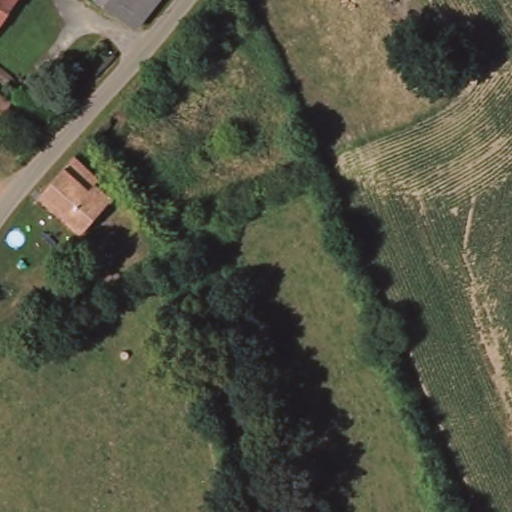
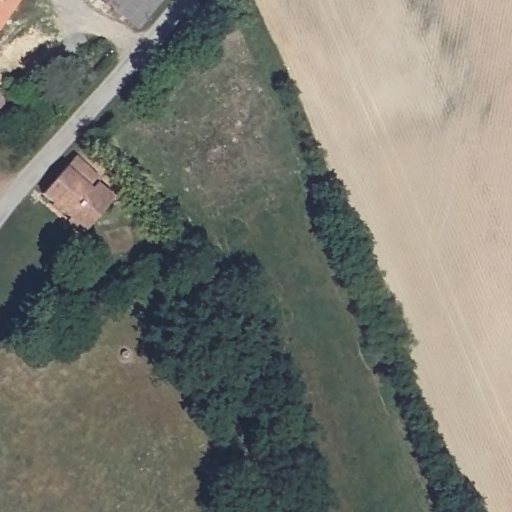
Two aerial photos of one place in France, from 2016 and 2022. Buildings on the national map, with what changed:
unchanged [(0,25),(0,0),(16,0),(0,25)]
unchanged [(133,33),(89,0),(159,0),(133,33)]
unchanged [(0,119),(0,91),(7,82),(19,90),(12,101),(0,119)]
unchanged [(83,236),(41,200),(75,161),(99,184),(96,188),(112,203),(83,236)]

